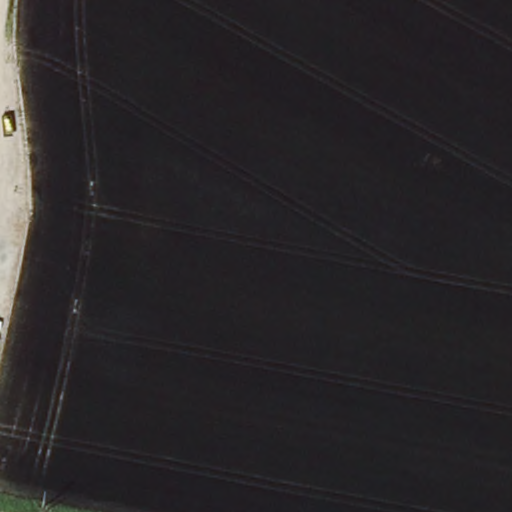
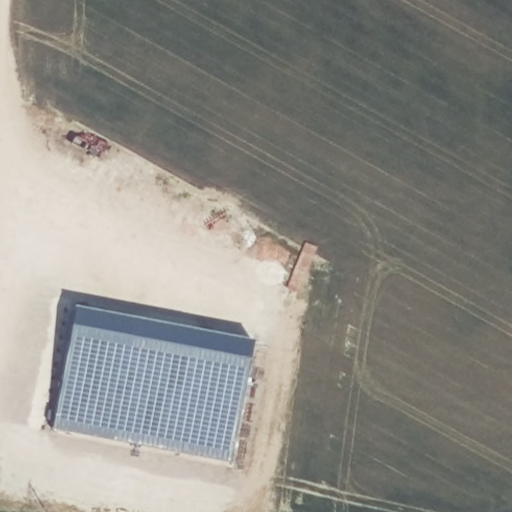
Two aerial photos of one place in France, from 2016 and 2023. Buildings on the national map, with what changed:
new [(231,464),(52,432),(76,311),(254,345),(231,464)]

